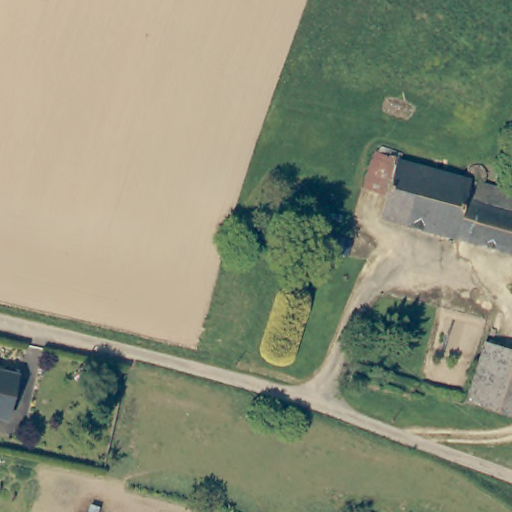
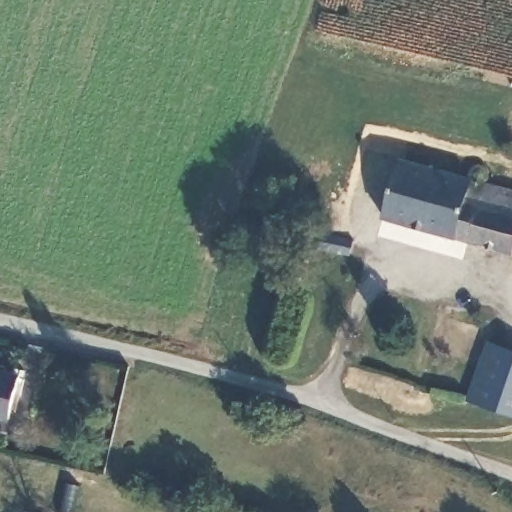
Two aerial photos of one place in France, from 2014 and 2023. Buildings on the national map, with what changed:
unchanged [(395,160),(456,175),(460,162),(468,157),(477,158),(486,164),(485,181),(512,187),(508,208),(512,209),(512,254),(511,255),(383,222),(386,201),(358,195),(363,169),(371,144),(397,150),(395,160)]
unchanged [(323,234),(369,246),(364,272),(309,259),(313,234),(323,234)]
unchanged [(481,347),(512,356),(512,419),(500,415),(467,406),(481,347)]
unchanged [(19,372),(10,418),(0,417),(0,370),(19,372)]

